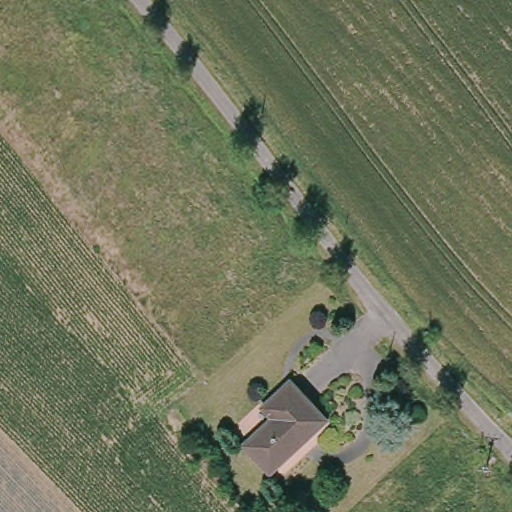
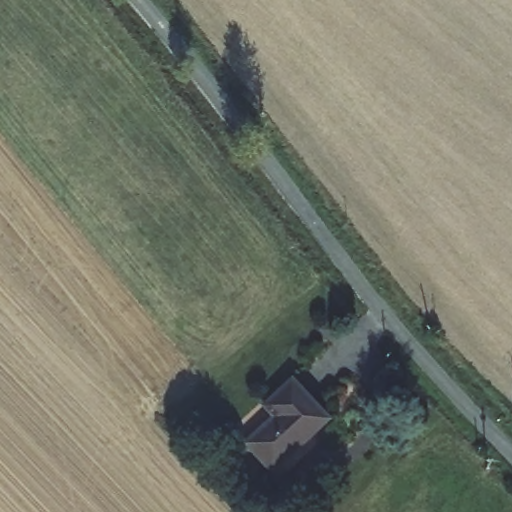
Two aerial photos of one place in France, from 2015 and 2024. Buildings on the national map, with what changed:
unchanged [(263,469),(244,435),(277,418),(270,403),(305,384),(330,432),(263,469)]

